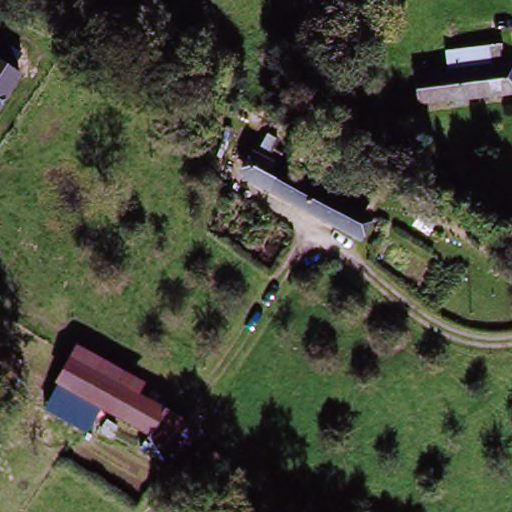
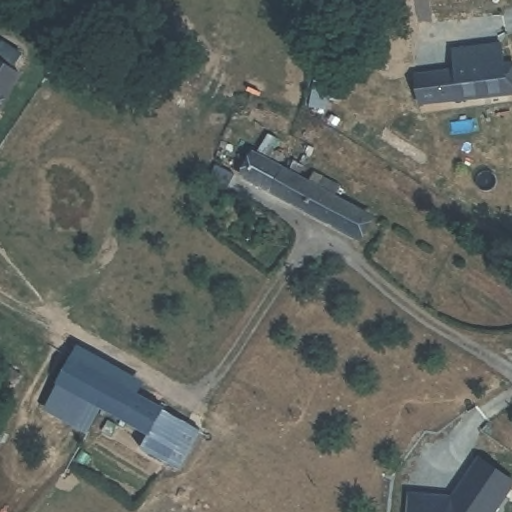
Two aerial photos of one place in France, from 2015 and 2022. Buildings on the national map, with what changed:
unchanged [(29,64),(0,114),(0,45),(29,64)]
unchanged [(512,63),(512,94),(421,110),(416,85),(445,78),(442,55),(500,47),(503,65),(512,63)]
unchanged [(326,82),(337,84),(335,104),(323,103),(326,82)]
unchanged [(370,220),(351,248),(251,174),(271,148),(370,220)]
unchanged [(139,384),(132,397),(204,435),(189,462),(50,389),(70,348),(139,384)]
new [(439,498),(449,505),(470,473),(479,460),(512,481),(512,486),(505,496),(495,512),(409,512),(410,497),(439,498)]

